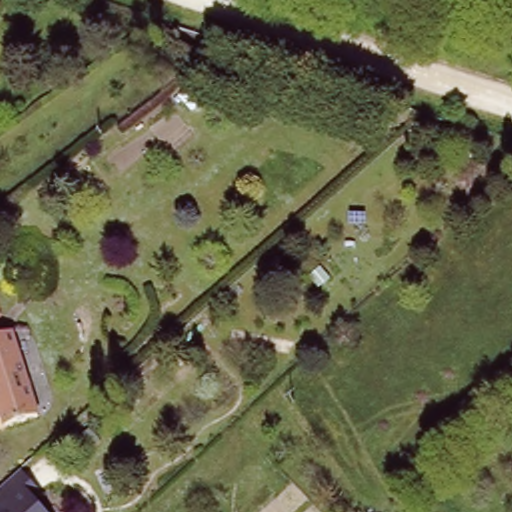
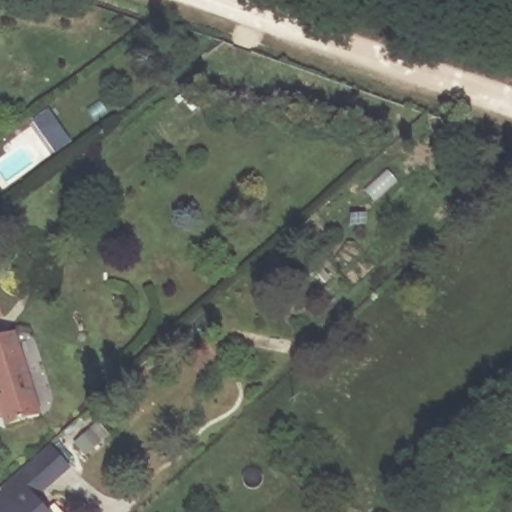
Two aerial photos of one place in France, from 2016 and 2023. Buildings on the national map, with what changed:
unchanged [(7,412),(0,414),(0,338),(15,334),(40,412),(10,421),(7,412)]
unchanged [(36,495),(52,512),(0,512),(0,490),(26,467),(43,489),(36,495)]

